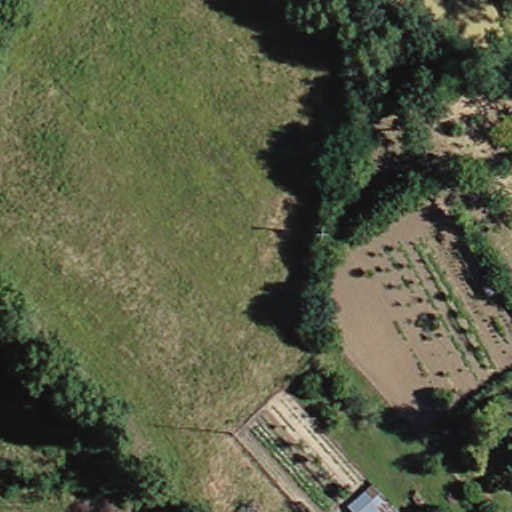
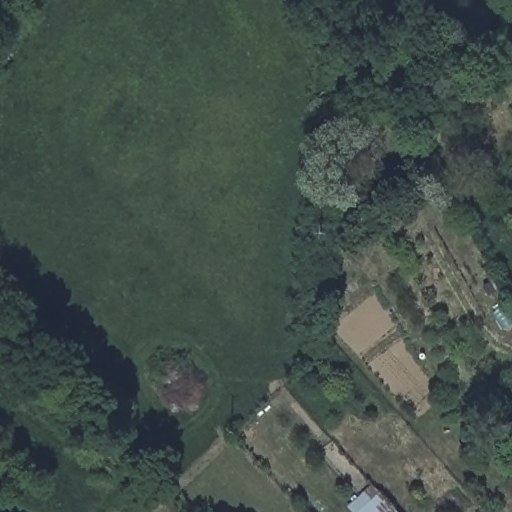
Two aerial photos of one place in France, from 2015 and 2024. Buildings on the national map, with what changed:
unchanged [(342,509),(367,486),(390,512),(346,512),(342,509)]

